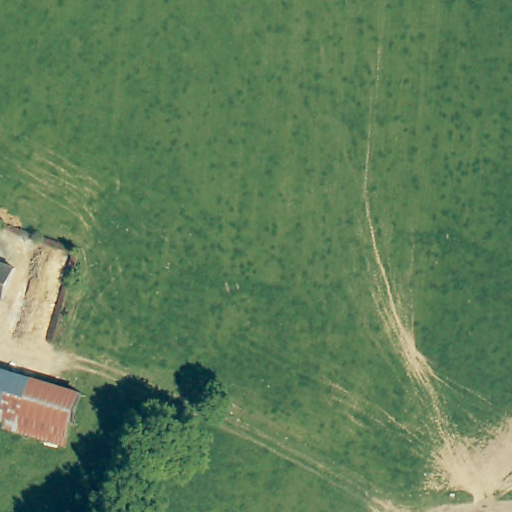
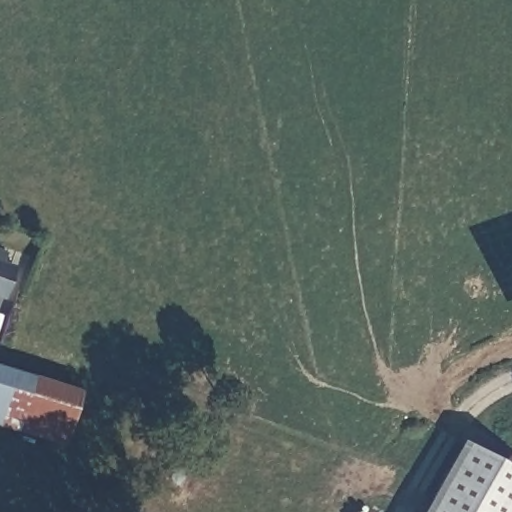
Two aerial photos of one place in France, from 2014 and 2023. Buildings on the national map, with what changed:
unchanged [(9,302),(0,299),(0,266),(19,273),(9,302)]
unchanged [(86,388),(69,443),(51,438),(0,426),(0,366),(71,385),(86,388)]
new [(512,468),(512,512),(422,512),(463,440),(512,468)]

